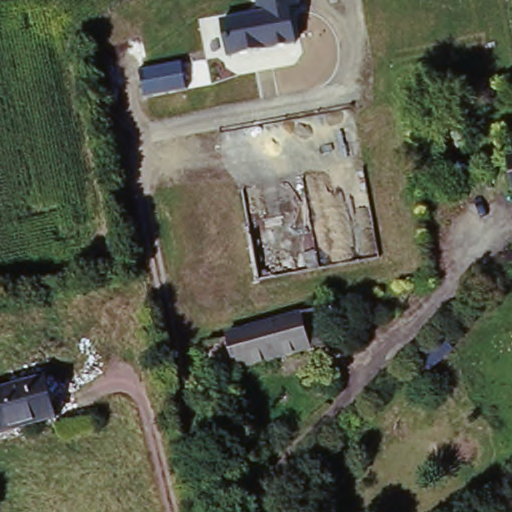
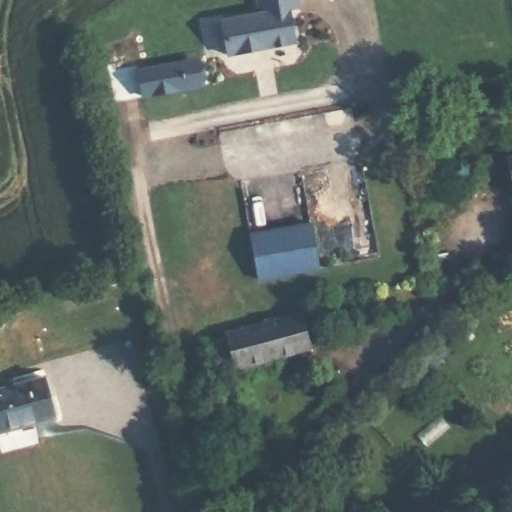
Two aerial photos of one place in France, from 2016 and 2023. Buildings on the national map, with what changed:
unchanged [(229,60),(223,18),(258,12),(256,0),(295,0),(304,48),(229,60)]
unchanged [(190,90),(146,99),(141,70),(182,63),(190,90)]
unchanged [(512,187),(507,163),(512,162),(512,187)]
new [(320,268),(259,280),(248,235),(313,222),(320,268)]
unchanged [(314,351),(236,369),(226,334),(305,316),(314,351)]
unchanged [(45,379),(56,419),(0,434),(0,391),(45,379)]

